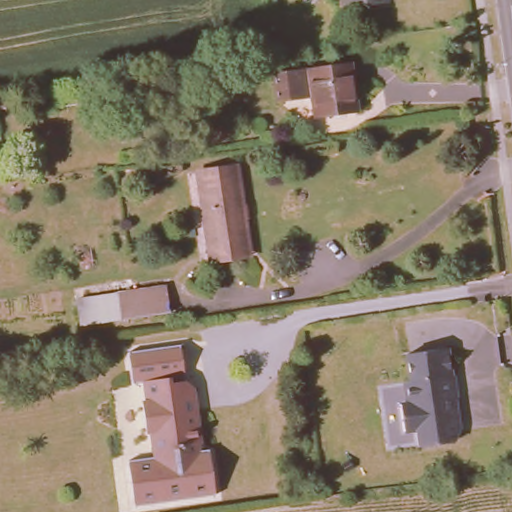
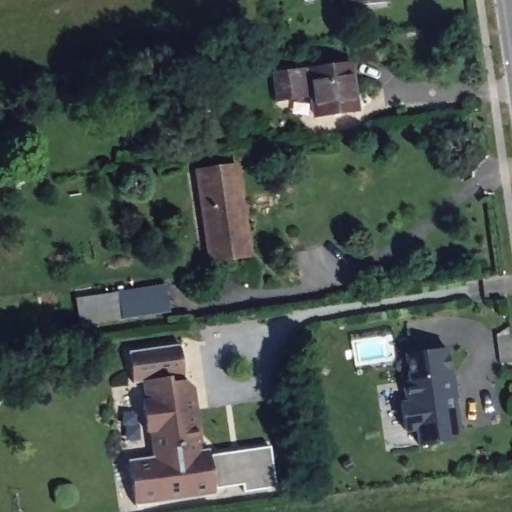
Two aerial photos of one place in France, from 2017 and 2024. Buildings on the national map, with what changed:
unchanged [(342,0),(357,0),(342,1),(342,0)]
unchanged [(345,63),(352,110),(310,116),(307,96),(273,101),(269,74),(345,63)]
unchanged [(0,110),(0,90),(3,90),(6,109),(0,110)]
unchanged [(230,257),(210,260),(198,171),(237,166),(247,243),(249,255),(230,257)]
unchanged [(174,311),(125,318),(121,292),(170,285),(174,311)]
unchanged [(125,318),(84,324),(80,299),(121,292),(125,318)]
unchanged [(128,460),(156,456),(152,431),(147,432),(143,408),(148,401),(145,382),(133,383),(128,352),(180,345),(185,380),(191,385),(199,437),(197,440),(197,450),(209,448),(216,493),(135,505),(128,460)]
unchanged [(445,353),(449,380),(451,380),(454,402),(452,405),(457,435),(447,437),(441,443),(442,448),(418,452),(416,435),(402,436),(399,410),(407,408),(403,387),(409,386),(405,360),(445,353)]
new [(210,455),(271,447),(276,486),(245,491),(244,484),(215,488),(210,455)]

